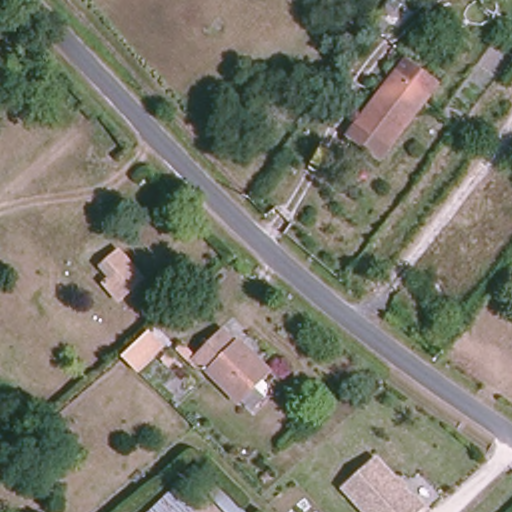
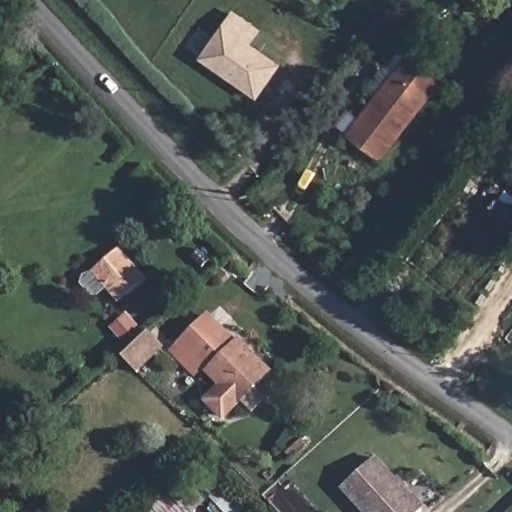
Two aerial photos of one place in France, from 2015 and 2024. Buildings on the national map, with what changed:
new [(232,10),(261,30),(252,44),(282,64),(256,99),(199,59),(223,24),(232,10)]
unchanged [(439,82),(375,159),(346,133),(409,57),(439,82)]
unchanged [(150,279),(122,303),(109,288),(96,274),(110,262),(125,248),(150,279)]
unchanged [(239,401),(197,355),(229,327),(268,371),(239,401)]
unchanged [(137,373),(121,356),(150,328),(167,348),(137,373)]
unchanged [(378,452),(425,504),(416,512),(359,512),(338,487),(378,452)]
unchanged [(186,480),(206,501),(196,512),(152,512),(186,480)]
unchanged [(207,495),(217,484),(247,512),(225,512),(207,495)]

